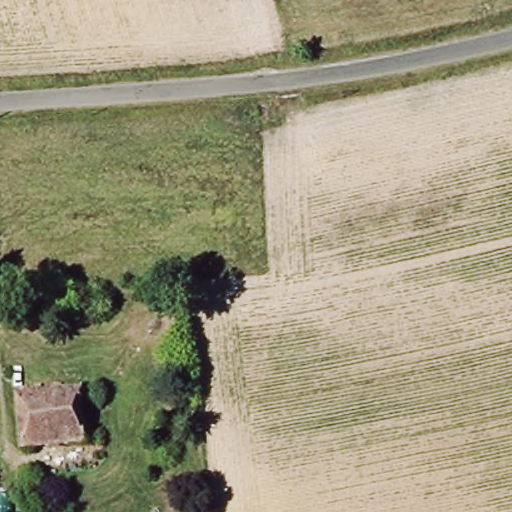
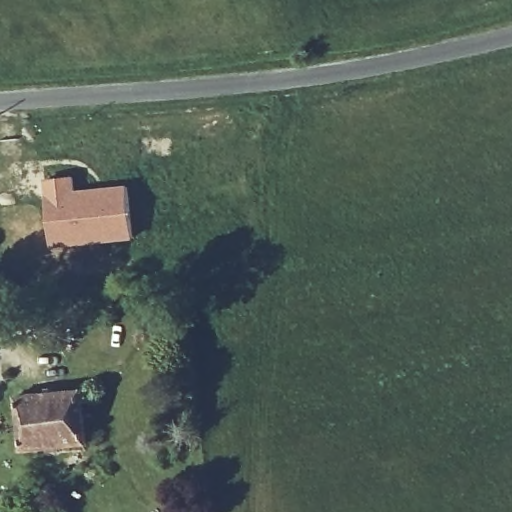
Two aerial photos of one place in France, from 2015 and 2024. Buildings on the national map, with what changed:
new [(56,234),(52,179),(79,177),(80,192),(92,190),(111,189),(134,187),(139,238),(115,240),(57,244),(56,234)]
unchanged [(22,449),(17,396),(81,391),(86,444),(22,449)]

